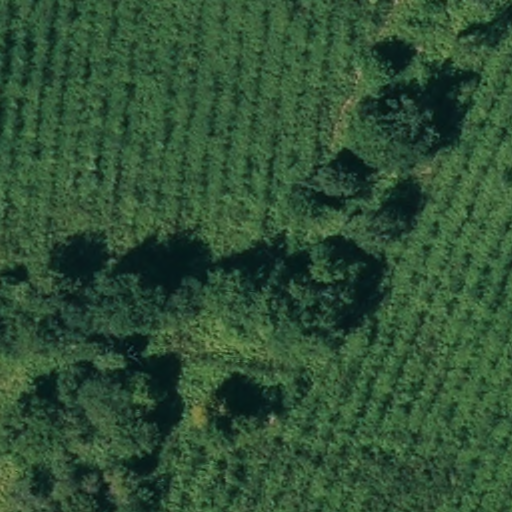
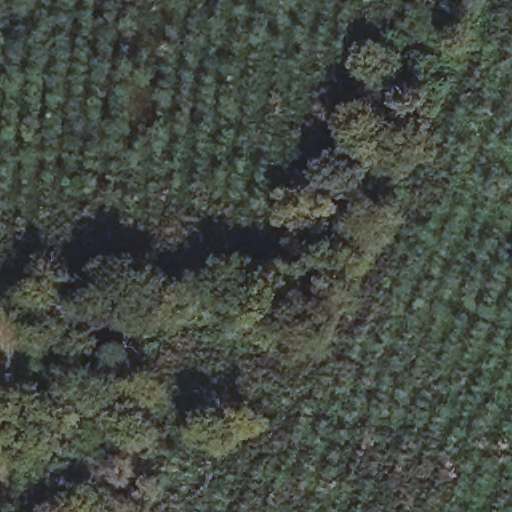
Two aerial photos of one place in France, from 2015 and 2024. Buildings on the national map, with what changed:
[]

